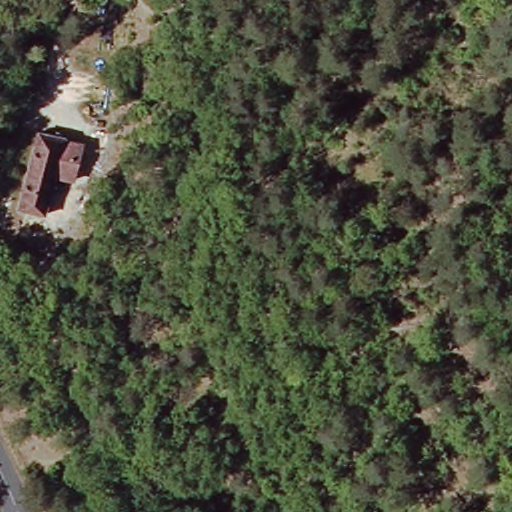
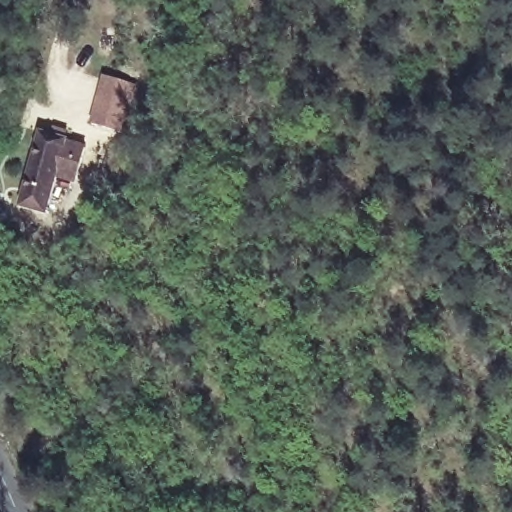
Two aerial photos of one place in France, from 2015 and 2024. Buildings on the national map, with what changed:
new [(102,75),(135,84),(122,132),(89,123),(102,75)]
unchanged [(62,140),(62,146),(78,149),(70,181),(50,177),(42,214),(15,208),(35,135),(62,140)]

